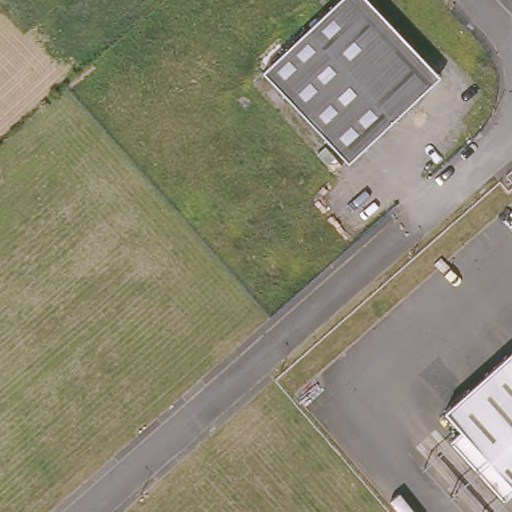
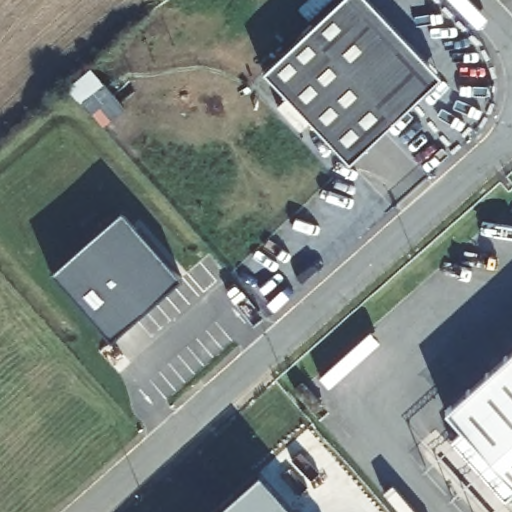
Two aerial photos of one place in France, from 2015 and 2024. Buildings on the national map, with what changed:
unchanged [(338,0),(369,0),(441,76),(357,154),(349,161),(264,70),(270,64),(338,0)]
new [(66,86),(88,66),(125,106),(103,126),(66,86)]
new [(179,277),(113,338),(52,271),(123,210),(179,277)]
unchanged [(503,504),(447,447),(459,435),(439,414),(512,344),(512,495),(503,504)]
new [(261,471),(298,512),(214,512),(261,471)]

